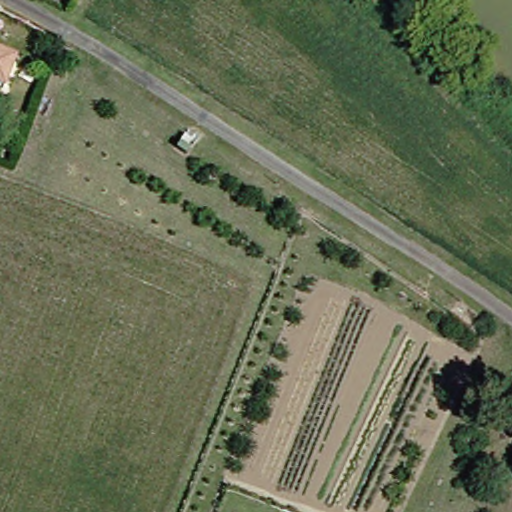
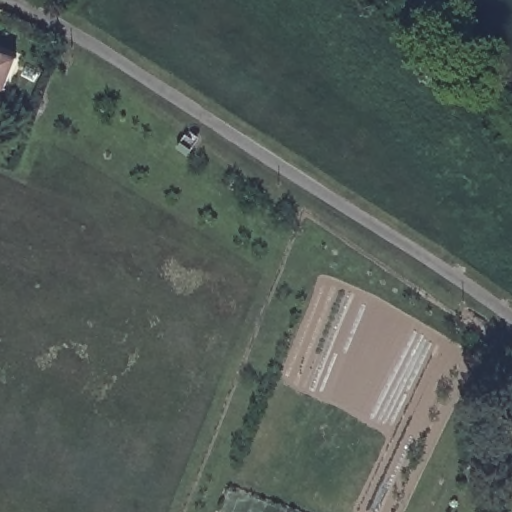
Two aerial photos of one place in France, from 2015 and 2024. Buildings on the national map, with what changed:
unchanged [(0,80),(0,52),(10,56),(0,80)]

